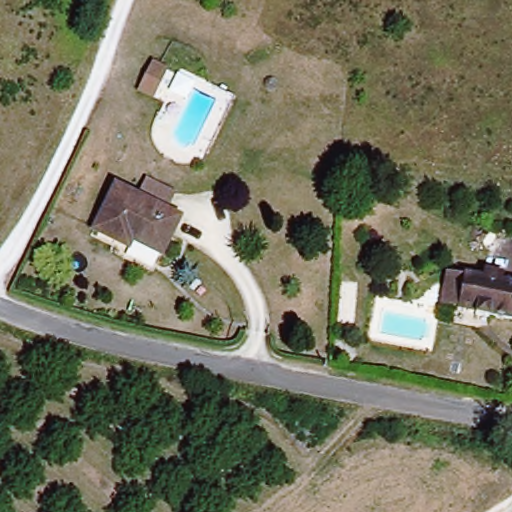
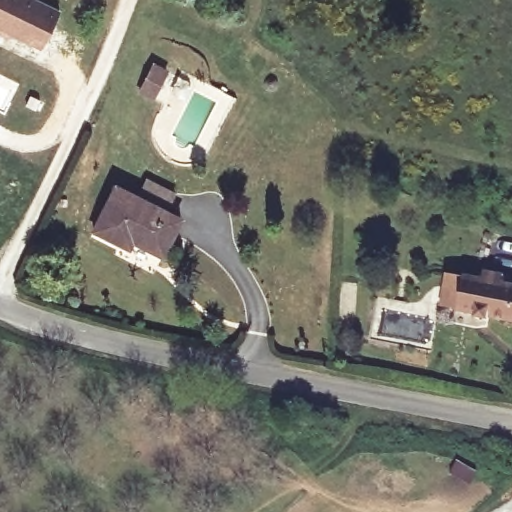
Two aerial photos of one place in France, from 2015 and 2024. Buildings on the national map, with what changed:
new [(56,14),(38,49),(0,31),(0,0),(26,0),(56,14)]
unchanged [(143,86),(155,59),(169,65),(157,92),(143,86)]
unchanged [(164,256),(135,241),(131,249),(96,230),(120,185),(140,196),(149,178),(180,194),(170,212),(184,219),(164,256)]
unchanged [(508,276),(507,284),(512,285),(512,321),(492,317),(491,320),(479,318),(479,314),(461,311),(445,308),(452,273),(469,277),(487,281),(489,272),(508,276)]

